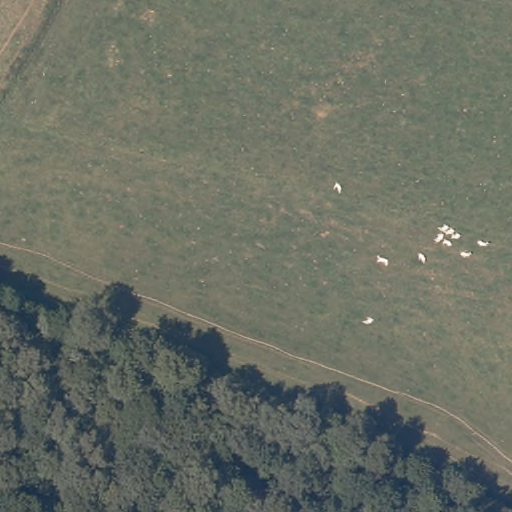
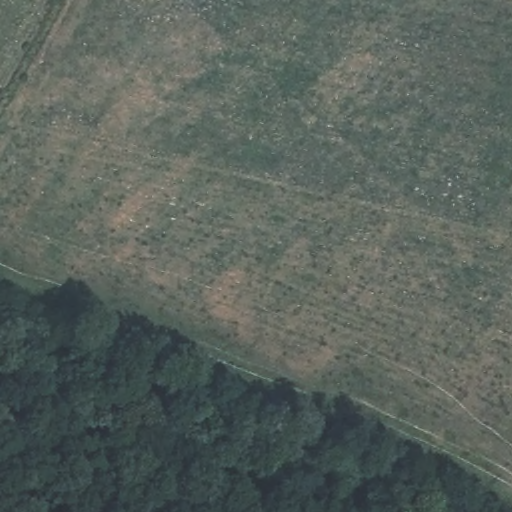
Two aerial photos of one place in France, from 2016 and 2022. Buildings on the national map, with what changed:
[]

